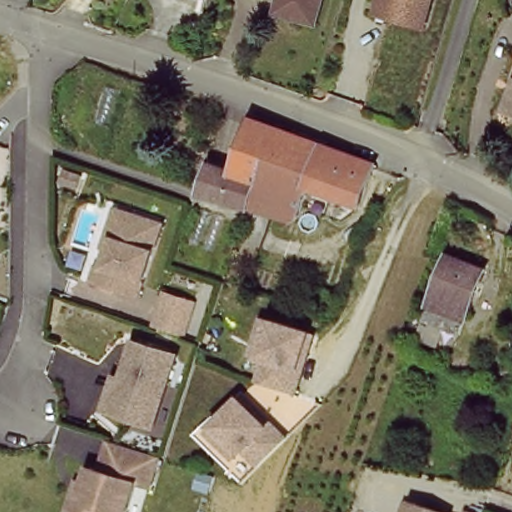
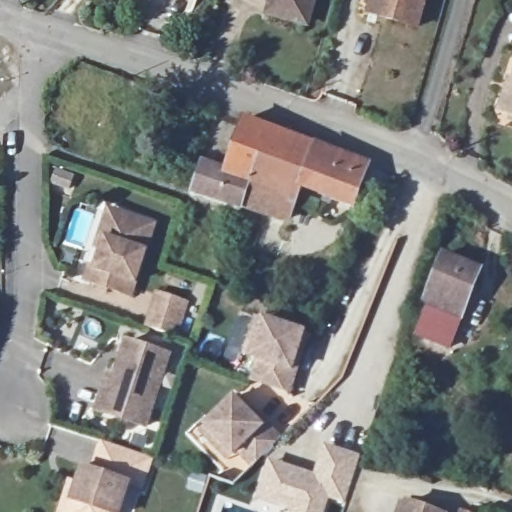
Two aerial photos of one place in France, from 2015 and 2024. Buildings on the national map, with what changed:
unchanged [(314,11),(281,2),(281,0),(317,0),(314,11)]
unchanged [(376,0),(427,0),(418,32),(380,20),(371,17),(376,0)]
unchanged [(507,80),(509,80),(512,71),(512,113),(508,112),(497,108),(507,80)]
unchanged [(240,123),(366,169),(349,210),(301,193),(287,227),(265,220),(212,204),(191,196),(203,162),(224,170),(240,123)]
unchanged [(86,282),(91,267),(96,269),(102,251),(96,249),(108,210),(155,225),(152,234),(132,297),(86,282)]
unchanged [(445,253),(484,265),(460,329),(422,316),(445,253)]
unchanged [(316,290),(334,298),(326,316),(308,310),(316,290)]
unchanged [(188,303),(177,336),(149,327),(160,294),(188,303)]
unchanged [(298,377),(302,378),(295,400),(258,387),(264,367),(257,365),(250,362),(262,325),(269,327),(310,340),(298,377)]
unchanged [(440,335),(434,355),(412,348),(418,328),(440,335)]
unchanged [(109,378),(116,381),(129,342),(171,355),(148,428),(110,416),(98,412),(109,378)]
unchanged [(196,434),(202,428),(230,400),(258,428),(261,425),(276,441),(249,468),(233,453),(230,457),(225,462),(196,434)]
unchanged [(79,486),(84,470),(94,473),(103,443),(104,444),(110,446),(118,448),(126,451),(128,452),(131,453),(142,456),(145,457),(150,459),(153,460),(143,490),(130,486),(121,512),(62,512),(72,484),(79,486)]
new [(326,449),(359,460),(344,503),(327,497),(322,512),(295,512),(259,500),(267,476),(312,491),(326,449)]
new [(267,476),(271,465),(316,480),(312,491),(267,476)]
unchanged [(442,512),(404,512),(408,500),(442,512)]
unchanged [(474,512),(461,512),(462,508),(474,512)]

